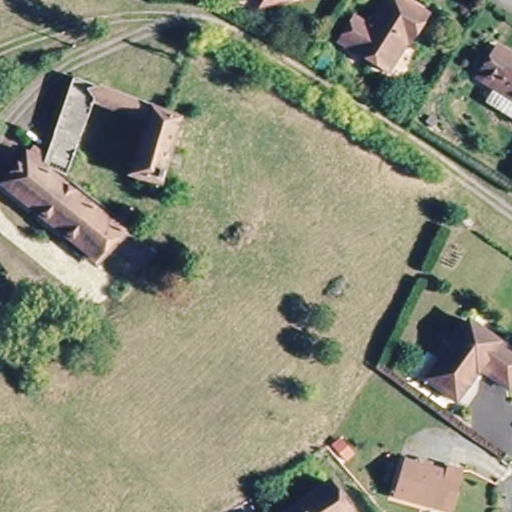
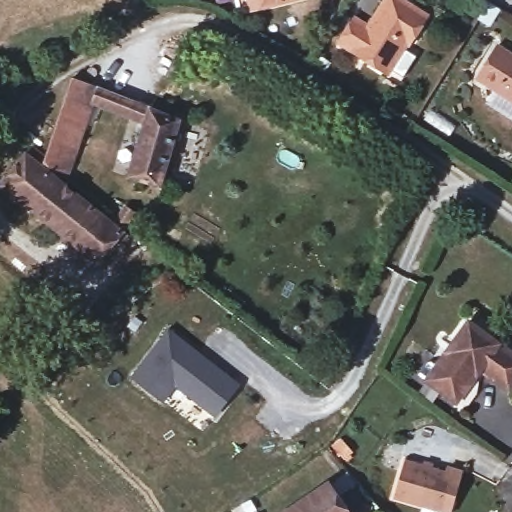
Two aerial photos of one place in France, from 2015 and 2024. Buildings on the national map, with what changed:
unchanged [(264,1),(255,5),(254,0),(270,0),(264,1)]
unchanged [(384,69),(334,37),(335,36),(350,11),(362,18),(373,0),(406,0),(422,10),(390,60),(384,69)]
unchanged [(512,58),(512,98),(474,74),(492,46),(512,58)]
unchanged [(131,221),(98,262),(5,184),(32,151),(35,153),(40,143),(52,149),(79,77),(148,104),(182,116),(160,185),(131,174),(147,123),(96,101),(70,173),(67,179),(107,212),(112,205),(121,195),(140,210),(131,221)]
unchanged [(512,350),(512,375),(507,383),(479,365),(457,395),(437,381),(428,375),(438,361),(468,319),(512,350)]
new [(241,381),(216,417),(176,387),(163,403),(130,378),(171,326),(241,381)]
unchanged [(402,462),(445,471),(447,467),(459,470),(449,508),(394,495),(402,462)]
unchanged [(352,512),(280,512),(328,478),(352,512)]

